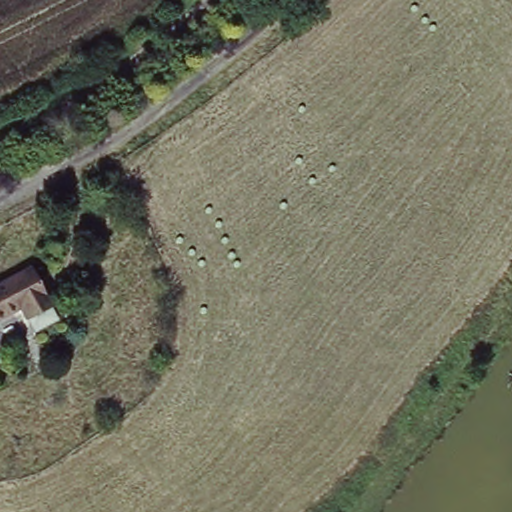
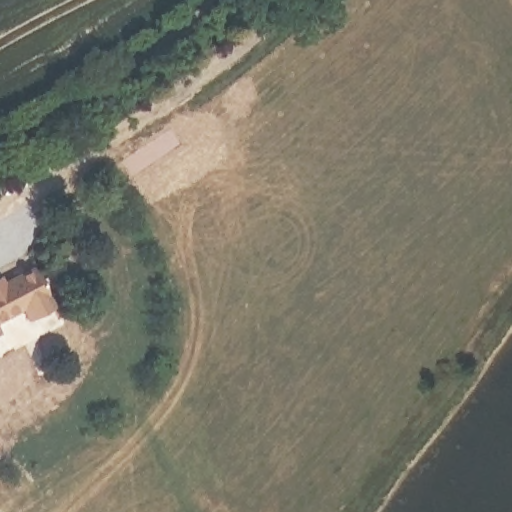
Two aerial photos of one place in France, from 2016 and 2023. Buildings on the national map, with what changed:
unchanged [(25,317),(16,301),(0,311),(0,279),(26,265),(45,296),(50,303),(25,317)]

